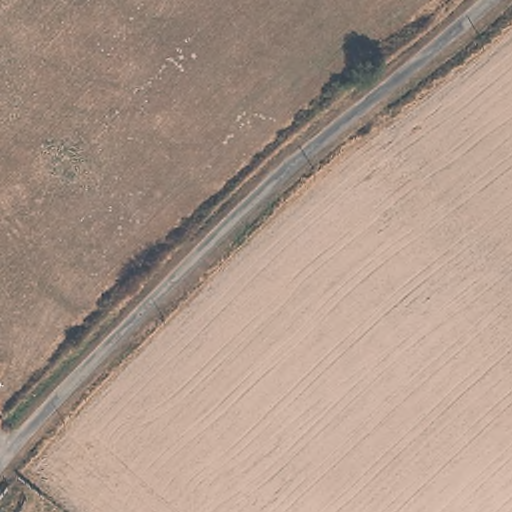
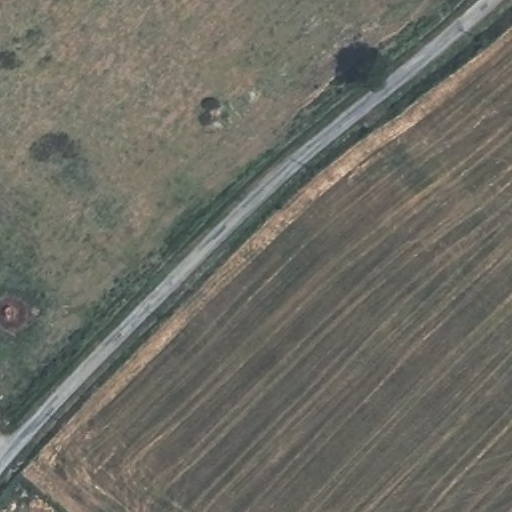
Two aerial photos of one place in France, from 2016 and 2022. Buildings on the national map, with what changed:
[]

